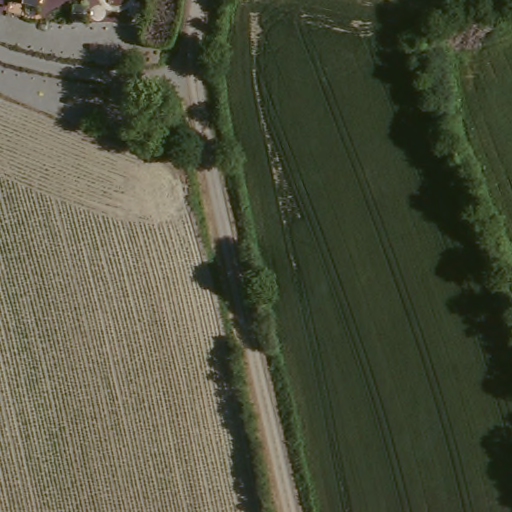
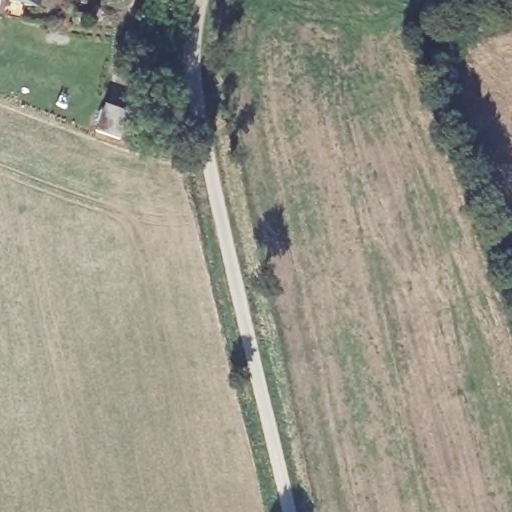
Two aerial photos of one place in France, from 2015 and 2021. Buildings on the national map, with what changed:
unchanged [(37,19),(5,9),(7,0),(45,0),(43,6),(37,19)]
unchanged [(127,118),(119,144),(91,136),(98,110),(127,118)]

